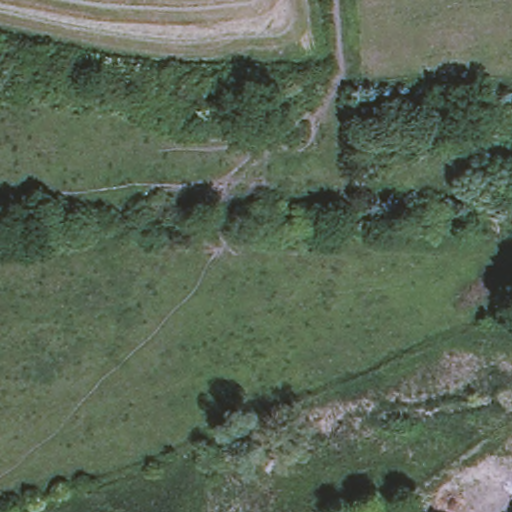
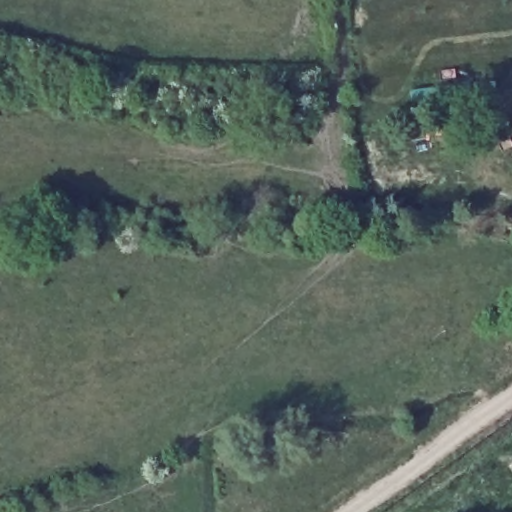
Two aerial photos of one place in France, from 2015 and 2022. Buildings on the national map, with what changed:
unchanged [(454,82),(480,82),(480,106),(453,105),(454,82)]

